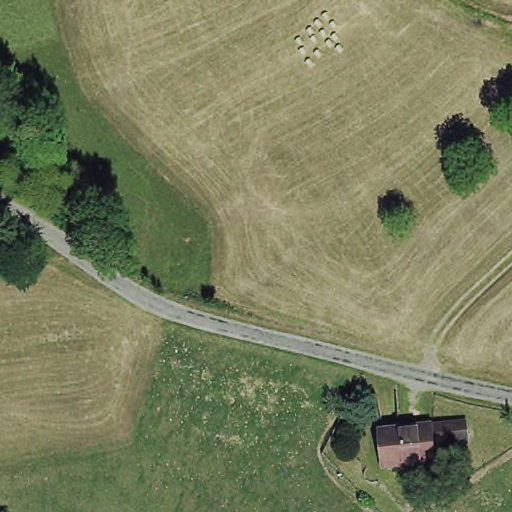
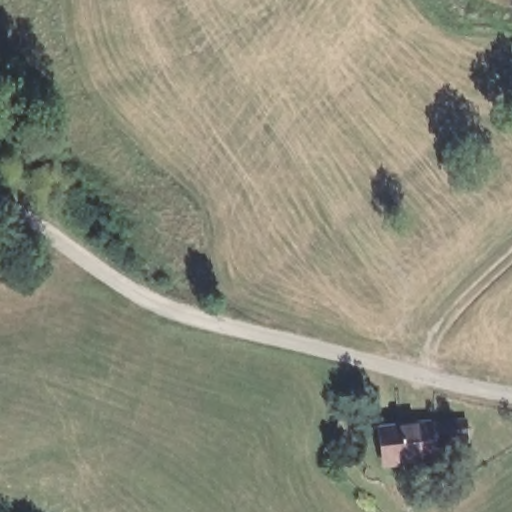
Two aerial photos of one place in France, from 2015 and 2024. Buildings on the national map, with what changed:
unchanged [(381,435),(408,432),(421,430),(431,429),(466,425),(469,447),(434,451),(435,465),(403,468),(386,471),(384,461),(383,451),(381,435)]

